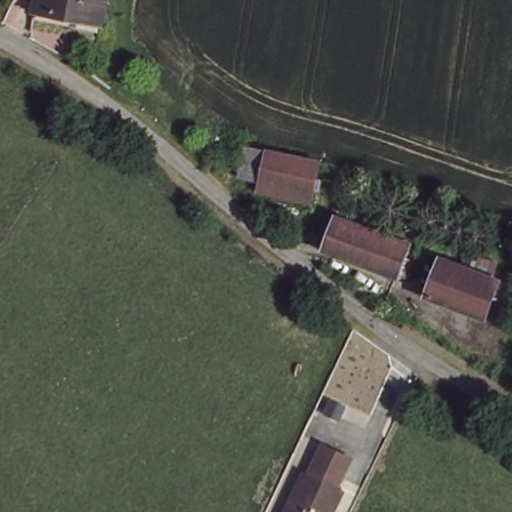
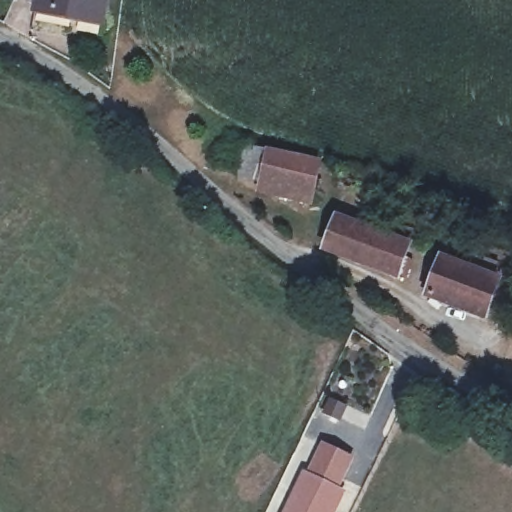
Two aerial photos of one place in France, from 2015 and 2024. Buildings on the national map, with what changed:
unchanged [(37,14),(39,0),(106,0),(101,27),(37,14)]
unchanged [(311,188),(263,183),(265,153),(314,158),(311,188)]
unchanged [(399,280),(332,254),(341,221),(410,246),(399,280)]
unchanged [(479,315),(429,295),(440,261),(492,280),(479,315)]
unchanged [(300,468),(308,471),(322,442),(350,456),(336,484),(343,487),(330,512),(279,512),(300,468)]

